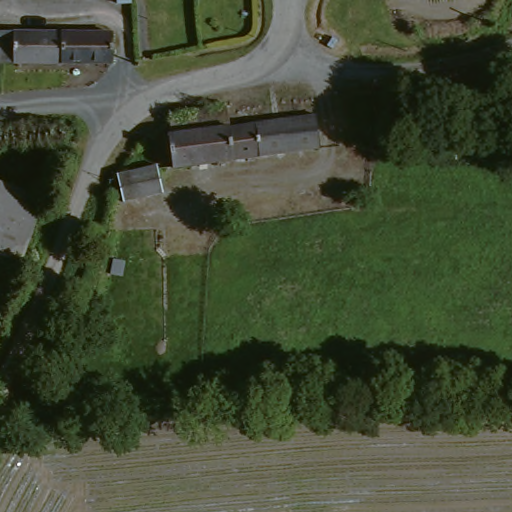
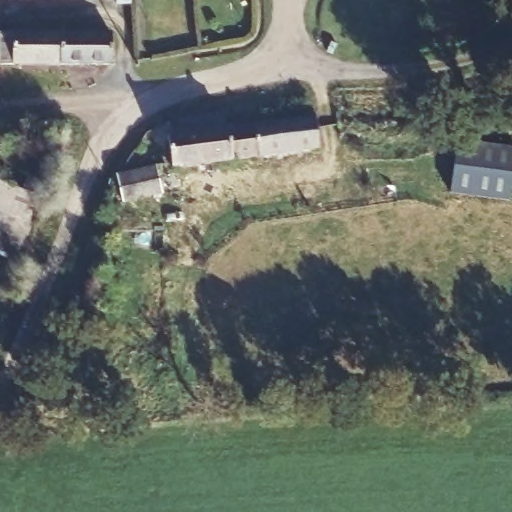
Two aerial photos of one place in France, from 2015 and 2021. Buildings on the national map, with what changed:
unchanged [(116,0),(134,0),(117,3),(116,0)]
unchanged [(111,39),(110,62),(0,60),(0,26),(111,29),(111,39)]
unchanged [(167,114),(223,104),(227,125),(170,131),(167,114)]
unchanged [(170,131),(227,125),(313,114),(320,148),(168,166),(164,132),(170,131)]
new [(453,191),(459,139),(512,146),(512,192),(511,199),(453,191)]
unchanged [(154,164),(159,192),(141,195),(123,201),(116,172),(127,169),(154,164)]
unchanged [(0,195),(0,184),(3,185),(0,195)]
unchanged [(9,268),(0,265),(0,195),(3,185),(35,197),(9,268)]

